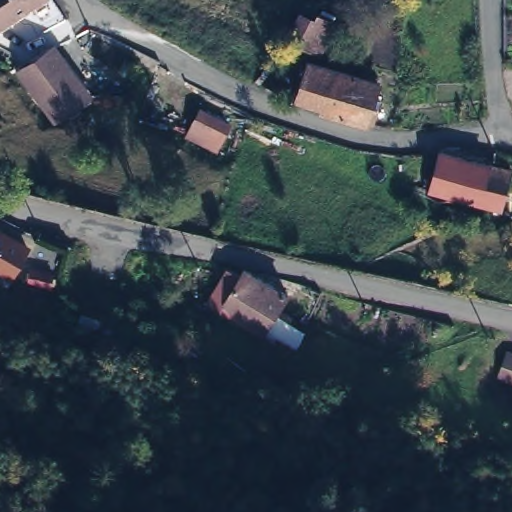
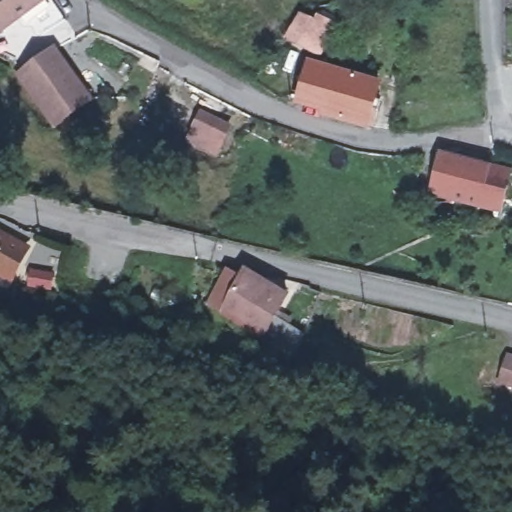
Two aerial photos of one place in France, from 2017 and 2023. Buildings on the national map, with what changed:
unchanged [(0,0),(22,0),(0,16),(0,0)]
unchanged [(306,5),(339,23),(320,53),(288,33),(306,5)]
unchanged [(37,55),(51,45),(68,69),(84,89),(86,94),(81,94),(73,95),(67,95),(62,96),(57,97),(54,98),(49,101),(48,101),(44,104),(42,105),(40,101),(16,70),(37,55)]
unchanged [(380,105),(374,103),(370,120),(327,108),(327,104),(301,96),(312,58),(364,73),(365,69),(381,74),(379,78),(380,79),(376,94),(382,96),(380,105)]
unchanged [(227,127),(222,141),(194,129),(201,114),(227,127)]
unchanged [(512,169),(502,207),(431,189),(442,151),(512,169)]
unchanged [(15,274),(0,265),(0,229),(1,227),(32,244),(15,274)]
unchanged [(250,267),(254,261),(297,287),(275,322),(232,297),(235,292),(222,284),(237,259),(250,267)]
unchanged [(52,278),(51,290),(29,288),(31,275),(52,278)]
unchanged [(512,357),(512,383),(497,378),(503,355),(512,357)]

